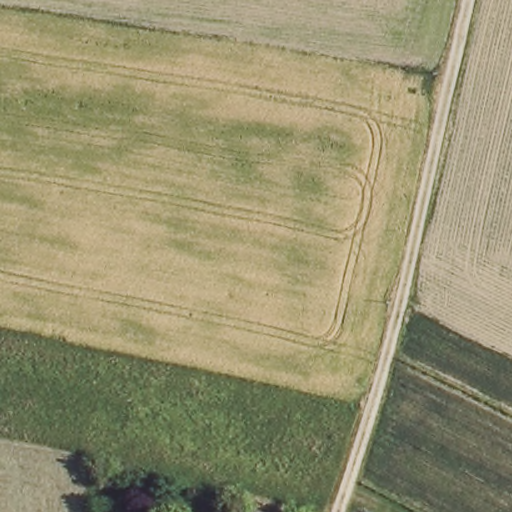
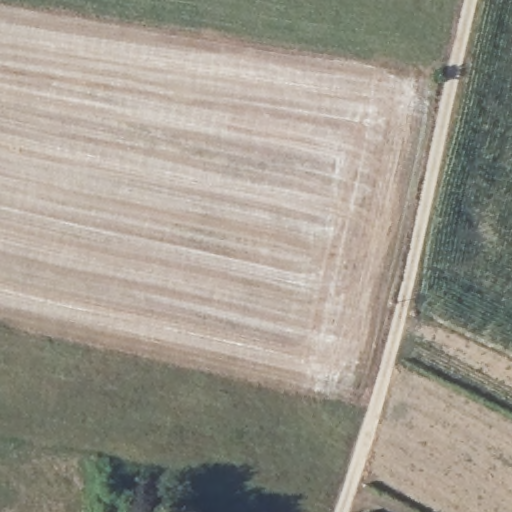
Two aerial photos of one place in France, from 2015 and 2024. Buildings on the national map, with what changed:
unchanged [(275,512),(244,512),(246,504),(275,512)]

